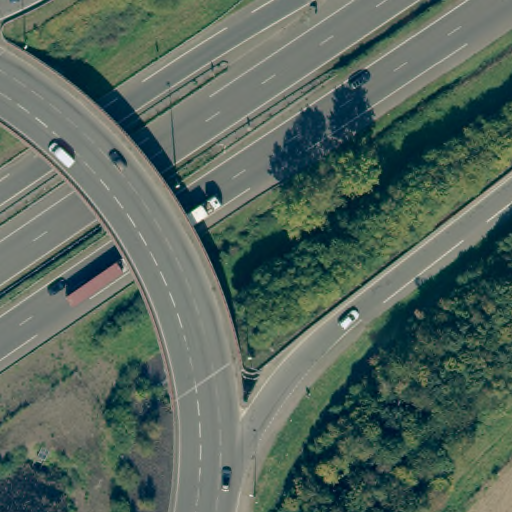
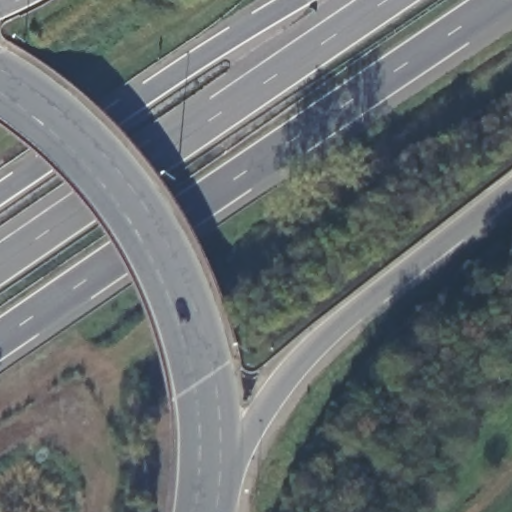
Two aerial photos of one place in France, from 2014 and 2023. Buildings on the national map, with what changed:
[]

